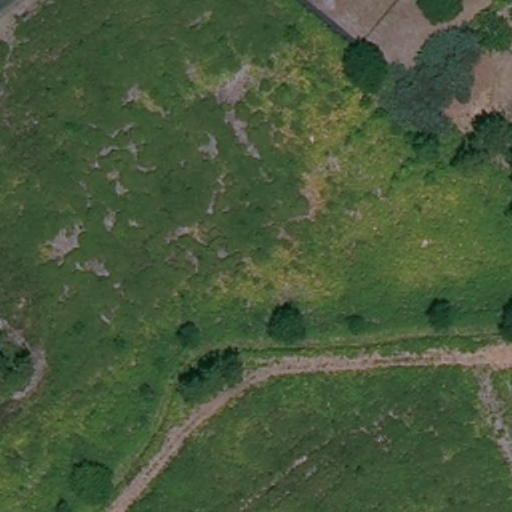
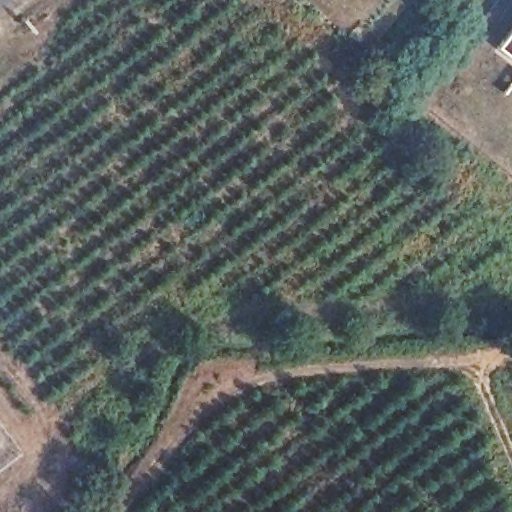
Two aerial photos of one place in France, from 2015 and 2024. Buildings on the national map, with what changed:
new [(498,46),(512,29),(512,57),(498,46)]

